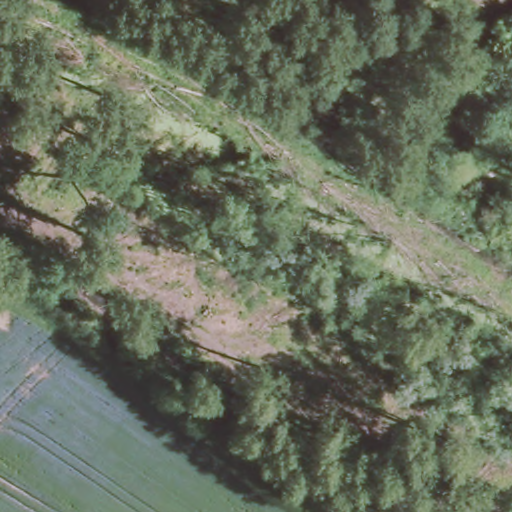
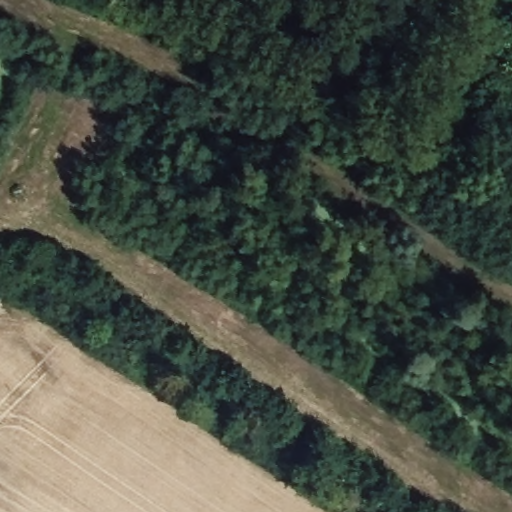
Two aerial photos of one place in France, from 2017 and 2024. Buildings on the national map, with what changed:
unchanged [(495,121),(483,111),(489,104),(501,115),(495,121)]

